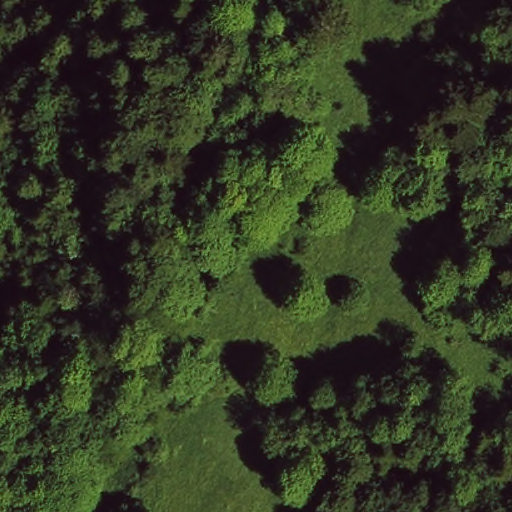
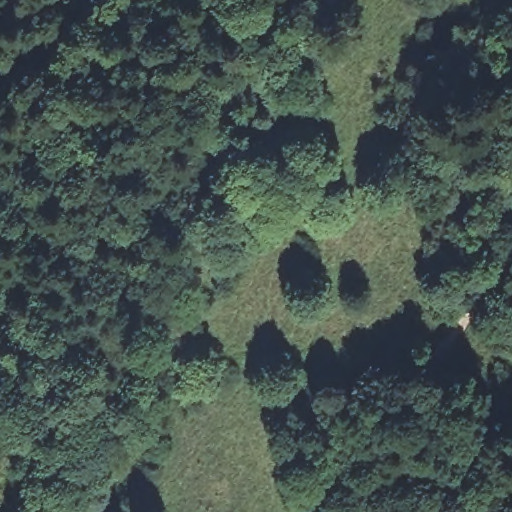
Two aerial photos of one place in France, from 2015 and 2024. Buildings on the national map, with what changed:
[]

